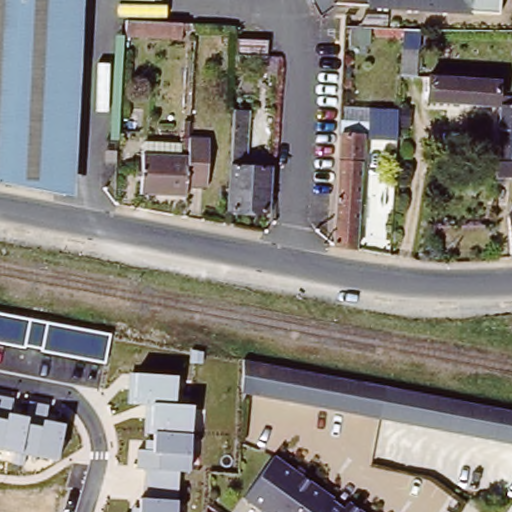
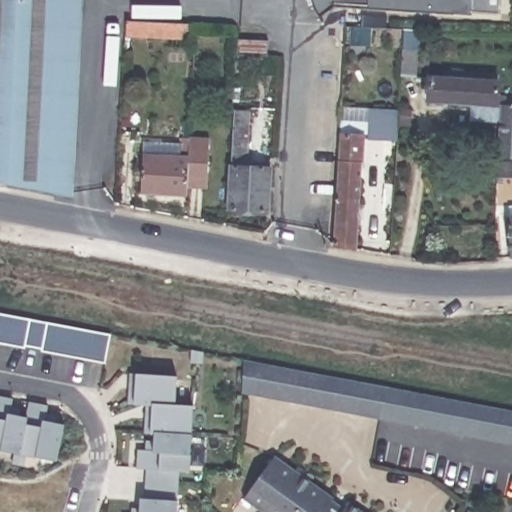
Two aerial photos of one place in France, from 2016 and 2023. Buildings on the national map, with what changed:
unchanged [(73,195),(0,181),(0,0),(79,0),(73,195)]
unchanged [(374,4),(345,2),(345,0),(374,0),(374,4)]
unchanged [(374,0),(469,0),(469,7),(374,4),(374,0)]
unchanged [(499,10),(469,7),(469,0),(499,0),(499,10)]
unchanged [(127,19),(185,22),(183,39),(126,35),(127,19)]
unchanged [(236,54),(238,39),(268,40),(266,55),(236,54)]
unchanged [(402,45),(418,46),(416,75),(400,74),(401,69),(390,68),(391,55),(401,56),(402,45)]
unchanged [(498,96),(507,96),(506,105),(512,105),(512,158),(497,156),(501,106),(428,101),(429,76),(451,77),(451,70),(475,71),(475,74),(482,75),(482,80),(499,81),(498,96)]
unchanged [(393,110),(391,139),(364,137),(366,109),(393,110)]
unchanged [(224,209),(229,110),(246,111),(243,166),(266,167),(264,210),(224,209)]
unchanged [(355,122),(354,134),(359,134),(352,249),(329,245),(335,121),(355,122)]
unchanged [(176,135),(186,135),(205,135),(203,183),(183,182),(183,192),(138,190),(140,150),(175,151),(176,135)]
unchanged [(512,179),(497,179),(497,162),(512,162),(512,179)]
unchanged [(508,215),(512,215),(512,256),(509,256),(508,215)]
unchanged [(104,363),(41,351),(42,349),(25,346),(24,348),(0,343),(0,314),(110,335),(104,363)]
unchanged [(392,386),(386,418),(246,390),(246,358),(392,386)]
unchanged [(138,508),(139,498),(143,498),(145,469),(136,468),(138,450),(146,450),(146,441),(153,440),(153,433),(145,433),(146,405),(128,404),(129,373),(176,376),(176,405),(193,406),(190,473),(179,472),(177,512),(131,512),(131,508),(138,508)]
unchanged [(512,443),(386,418),(392,386),(512,409),(512,443)]
unchanged [(57,461),(25,455),(24,465),(13,464),(14,452),(0,450),(0,397),(13,399),(11,413),(26,416),(29,402),(48,406),(46,421),(63,424),(57,461)]
unchanged [(269,455),(289,469),(308,483),(327,497),(324,501),(338,510),(344,502),(359,512),(256,512),(238,500),(269,455)]

